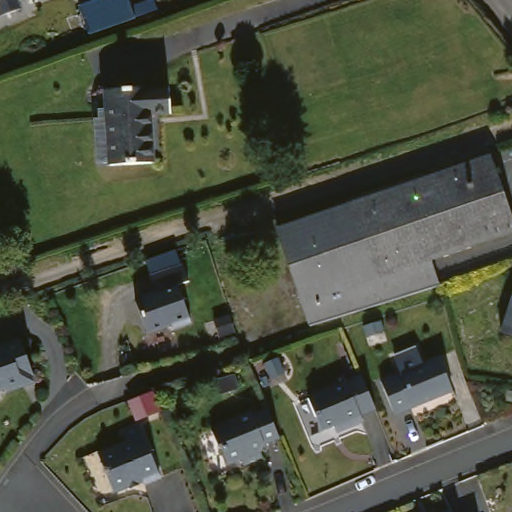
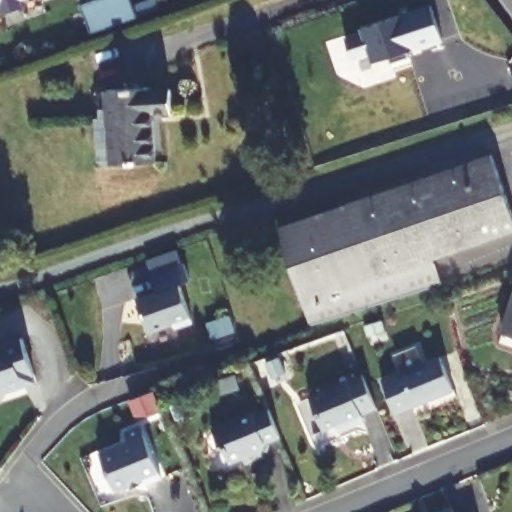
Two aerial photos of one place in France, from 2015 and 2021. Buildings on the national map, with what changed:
unchanged [(22,9),(0,16),(0,0),(26,0),(20,3),(22,9)]
unchanged [(129,0),(131,6),(149,0),(155,0),(159,11),(136,19),(91,34),(81,5),(96,0),(129,0)]
new [(445,41),(419,49),(417,38),(404,43),(408,59),(391,63),(390,59),(375,62),(372,55),(352,60),(346,39),(364,34),(362,28),(433,6),(445,41)]
unchanged [(100,118),(116,115),(113,89),(158,83),(158,86),(179,84),(181,106),(165,109),(172,158),(123,164),(106,167),(100,118)]
unchanged [(512,240),(426,271),(433,290),(307,335),(272,237),(488,159),(512,226),(512,240)]
unchanged [(172,330),(170,327),(145,335),(133,301),(154,294),(148,278),(181,266),(187,284),(176,287),(189,324),(172,330)]
unchanged [(512,338),(499,332),(512,300),(512,338)]
unchanged [(23,379),(26,387),(10,393),(9,390),(0,393),(0,349),(21,340),(35,374),(23,379)]
unchanged [(387,345),(391,356),(373,362),(369,351),(387,345)]
unchanged [(446,392),(409,405),(407,399),(401,401),(403,407),(387,413),(375,380),(396,373),(408,368),(417,365),(434,359),(446,392)]
unchanged [(370,414),(355,419),(357,426),(331,434),(329,429),(316,433),(304,399),(358,379),(370,414)]
unchanged [(264,446),(261,453),(258,454),(261,460),(243,466),(241,460),(227,465),(221,449),(218,447),(212,430),(252,416),(253,418),(269,413),(279,441),(264,446)]
unchanged [(143,488),(141,484),(112,496),(97,458),(126,446),(122,437),(138,431),(158,482),(143,488)]

